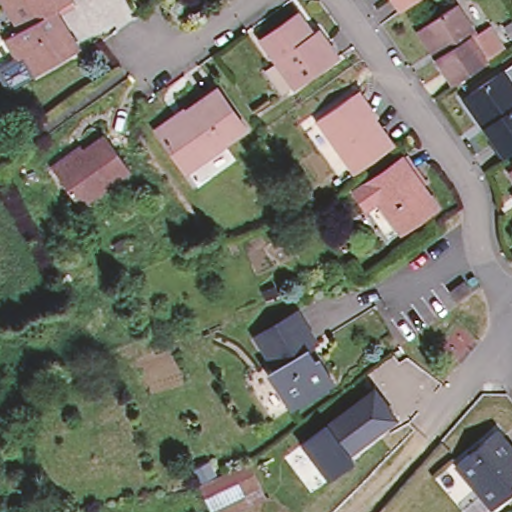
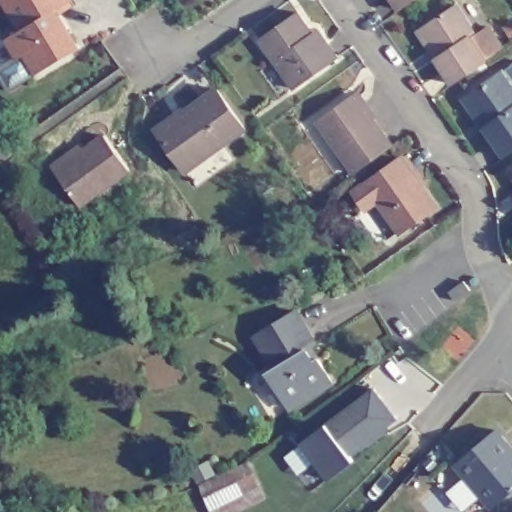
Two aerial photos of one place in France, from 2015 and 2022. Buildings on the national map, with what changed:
unchanged [(0,85),(0,69),(14,60),(2,39),(16,31),(0,4),(0,0),(26,0),(45,30),(53,24),(55,27),(64,29),(76,51),(33,78),(8,92),(6,94),(0,85)]
unchanged [(48,16),(53,24),(45,30),(26,0),(70,0),(71,1),(48,16)]
unchanged [(399,14),(388,0),(418,0),(399,14)]
unchanged [(437,57),(444,52),(439,46),(437,48),(422,25),(455,2),(474,30),(468,34),(472,39),(494,23),(509,44),(487,60),(456,84),(437,57)]
unchanged [(258,46),(302,14),(316,34),(336,62),(330,66),(293,94),(258,46)]
unchanged [(484,131),(462,101),(468,96),(503,72),(512,65),(512,154),(504,160),(484,131)]
unchanged [(250,142),(189,185),(153,133),(148,127),(174,107),(179,114),(213,90),(250,142)]
unchanged [(351,101),(356,98),(374,124),(392,151),(354,178),(316,125),(351,101)]
unchanged [(136,178),(83,217),(48,170),(45,165),(78,141),(98,126),(136,178)]
unchanged [(378,204),(366,213),(354,196),(401,162),(435,210),(400,235),(378,204)]
unchanged [(512,174),(512,178),(510,175),(512,174)]
unchanged [(449,293),(465,284),(466,285),(472,293),(456,304),(453,298),(449,293)]
unchanged [(275,355),(261,332),(301,309),(316,332),(275,355)]
unchanged [(296,406),(273,369),(281,364),(275,355),(316,332),(321,340),(317,342),(324,355),(338,379),(296,406)]
unchanged [(399,418),(351,455),(354,459),(326,481),(300,445),(376,386),(399,418)]
unchanged [(512,436),(512,486),(496,499),(460,456),(501,422),(512,436)]
unchanged [(197,512),(195,508),(186,488),(234,464),(243,485),(250,501),(228,512),(197,512)]

